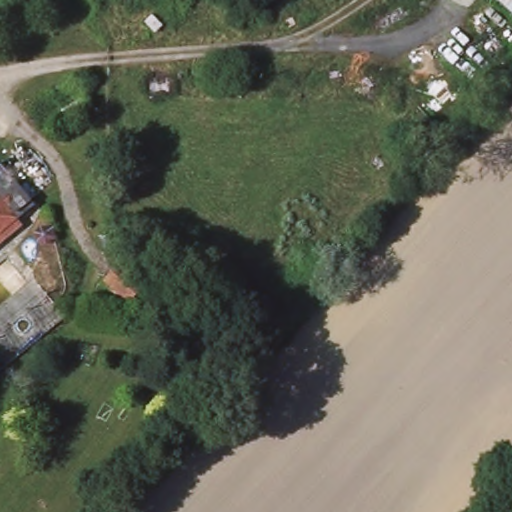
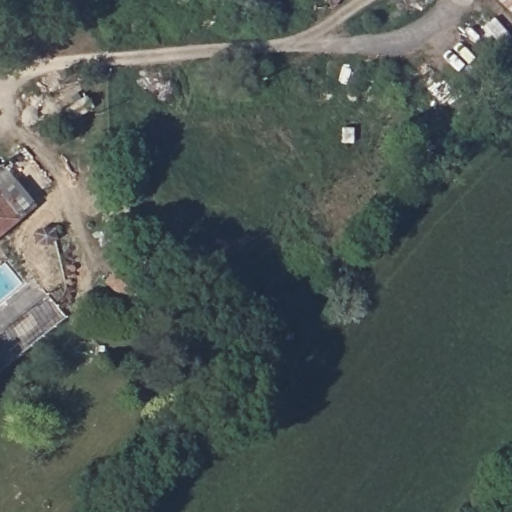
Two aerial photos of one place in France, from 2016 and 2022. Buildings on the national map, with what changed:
unchanged [(500,0),(512,0),(512,11),(500,0)]
unchanged [(21,221),(0,238),(0,170),(12,159),(35,187),(28,193),(39,206),(21,221)]
unchanged [(26,227),(12,239),(0,248),(0,238),(21,221),(26,227)]
unchanged [(161,275),(139,298),(114,275),(137,252),(161,275)]

